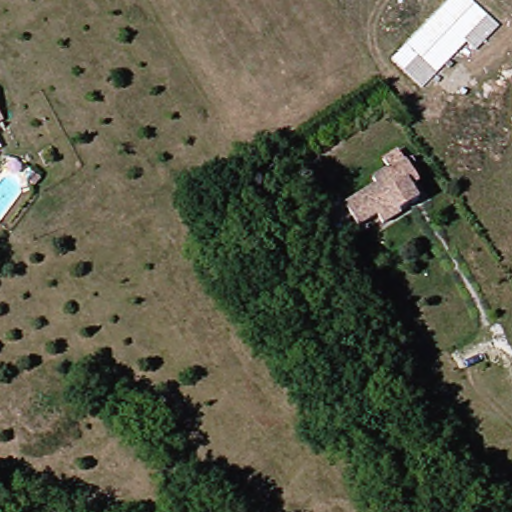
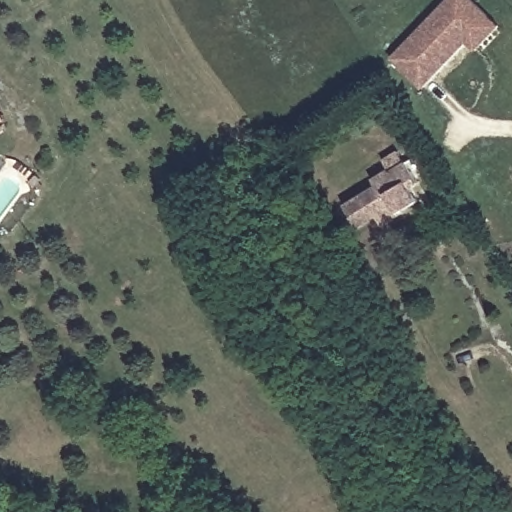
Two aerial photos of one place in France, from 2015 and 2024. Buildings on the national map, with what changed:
new [(449,0),(474,0),(502,27),(477,54),(468,45),(422,92),(392,60),(449,0)]
unchanged [(0,129),(0,120),(4,127),(0,129)]
unchanged [(376,189),(373,182),(390,173),(384,164),(400,155),(406,167),(413,162),(422,178),(416,182),(419,187),(411,192),(418,205),(399,216),(400,217),(381,227),(376,218),(356,229),(344,207),(376,189)]

